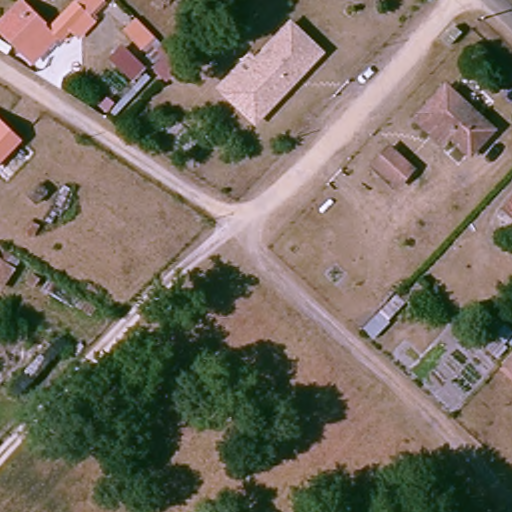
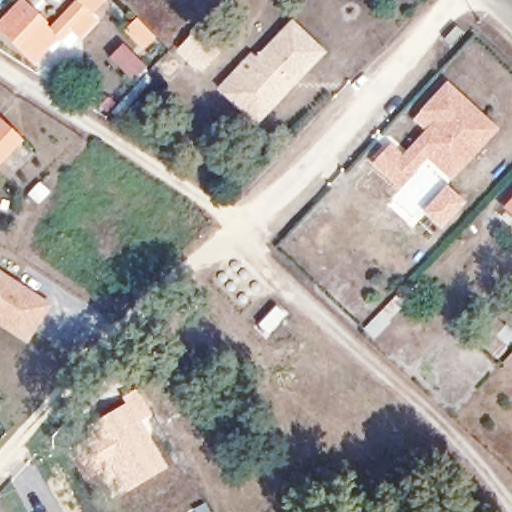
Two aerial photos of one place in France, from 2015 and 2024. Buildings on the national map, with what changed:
unchanged [(72,29),(62,40),(58,36),(36,60),(22,47),(20,49),(0,30),(0,25),(21,2),(49,29),(75,2),(78,0),(99,0),(86,13),(94,21),(79,36),(72,29)]
new [(443,41),(456,28),(462,35),(450,47),(443,41)]
unchanged [(272,111),(237,77),(252,61),(257,67),(293,29),(323,58),(297,86),(290,93),(272,111)]
unchanged [(463,56),(476,43),(483,50),(470,62),(463,56)]
unchanged [(447,82),(502,129),(477,158),(443,127),(436,134),(417,117),(447,82)]
unchanged [(19,132),(0,154),(0,116),(1,115),(19,132)]
unchanged [(393,146),(421,172),(405,193),(375,166),(393,146)]
unchanged [(512,201),(512,217),(504,210),(512,201)]
demolished [(36,223),(26,234),(19,227),(30,216),(36,223)]
demolished [(2,285),(0,284),(0,260),(13,269),(2,285)]
new [(0,272),(49,304),(25,341),(0,325),(0,272)]
unchanged [(512,346),(512,374),(498,361),(512,346)]
new [(96,417),(124,402),(121,396),(137,387),(153,414),(142,421),(169,467),(111,499),(102,485),(92,491),(64,441),(96,417)]

